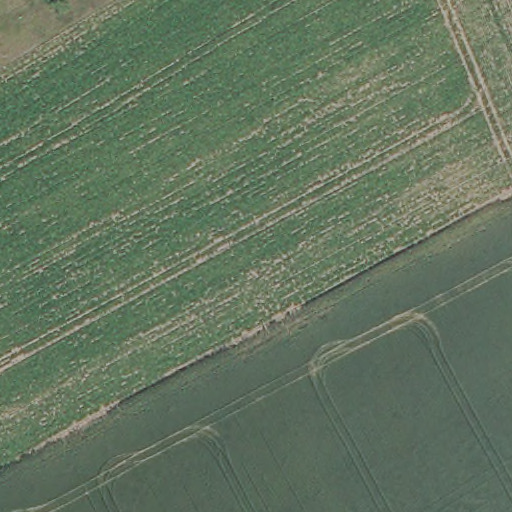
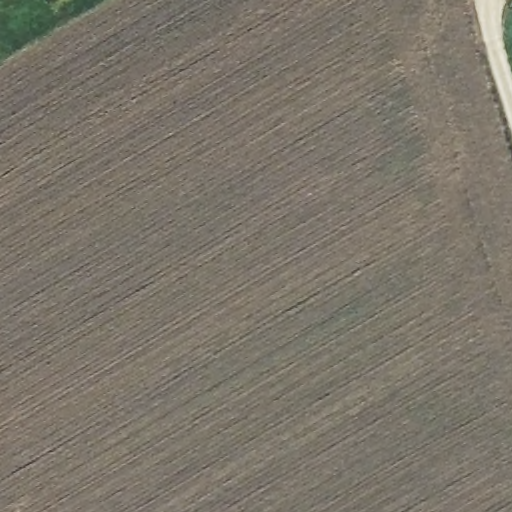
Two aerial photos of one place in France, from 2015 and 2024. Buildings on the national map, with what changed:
[]

